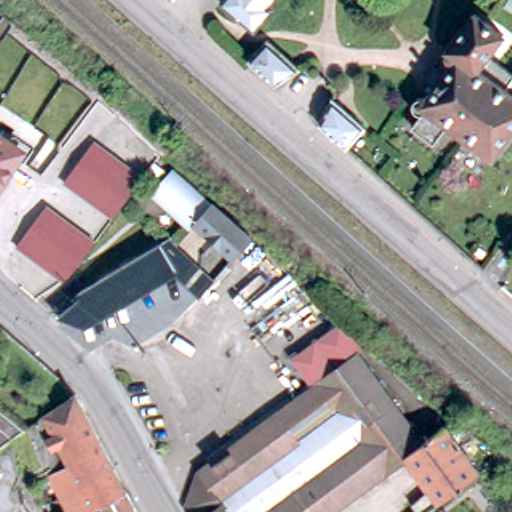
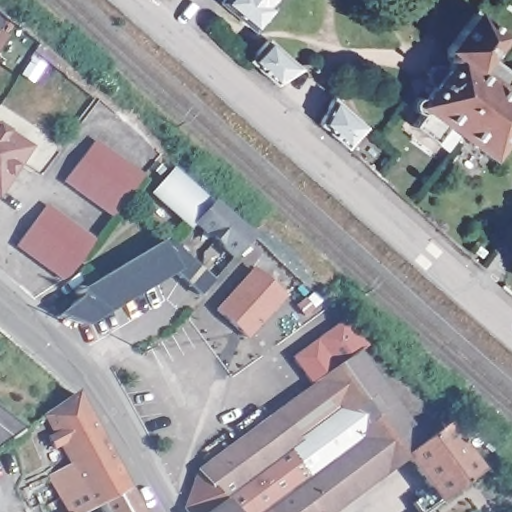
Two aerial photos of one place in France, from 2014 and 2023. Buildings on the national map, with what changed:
unchanged [(271,8),(252,31),(218,3),(221,0),(271,0),(267,5),(271,8)]
unchanged [(415,108),(419,101),(422,99),(427,99),(429,100),(437,89),(432,84),(430,74),(434,68),(445,67),(450,70),(455,64),(450,59),(450,50),(480,12),(507,34),(492,54),(512,69),(512,134),(490,163),(449,130),(437,146),(415,129),(425,117),(415,108)]
unchanged [(5,13),(12,20),(0,36),(0,37),(0,19),(5,13)]
unchanged [(246,61),(266,41),(297,69),(273,86),(246,61)]
unchanged [(322,121),(335,94),(368,124),(350,145),(322,121)]
unchanged [(2,130),(5,126),(34,145),(27,155),(22,151),(0,184),(0,129),(2,130)]
unchanged [(142,177),(115,218),(61,179),(91,138),(142,177)]
unchanged [(212,205),(195,225),(192,229),(154,194),(174,171),(212,205)]
unchanged [(97,242),(68,282),(15,244),(45,201),(97,242)]
unchanged [(195,225),(212,205),(250,239),(231,259),(195,225)]
unchanged [(193,287),(186,281),(173,269),(172,271),(161,278),(146,255),(170,241),(179,249),(196,263),(205,271),(216,281),(203,296),(193,287)]
unchanged [(140,291),(137,289),(115,302),(113,300),(93,313),(85,298),(82,294),(146,255),(161,278),(140,291)]
new [(250,270),(280,297),(245,337),(215,310),(250,270)]
unchanged [(328,315),(355,344),(330,360),(318,373),(295,350),(328,315)]
unchanged [(195,462),(219,445),(318,373),(330,360),(355,344),(422,435),(406,448),(318,512),(194,512),(183,497),(195,462)]
unchanged [(64,510),(45,475),(70,461),(42,412),(73,390),(125,489),(100,502),(87,509),(82,512),(60,512),(64,510)]
unchanged [(388,511),(430,481),(406,448),(422,435),(444,417),(477,464),(438,493),(411,512),(389,512),(388,511)]
unchanged [(100,502),(125,489),(138,512),(106,512),(100,502)]

